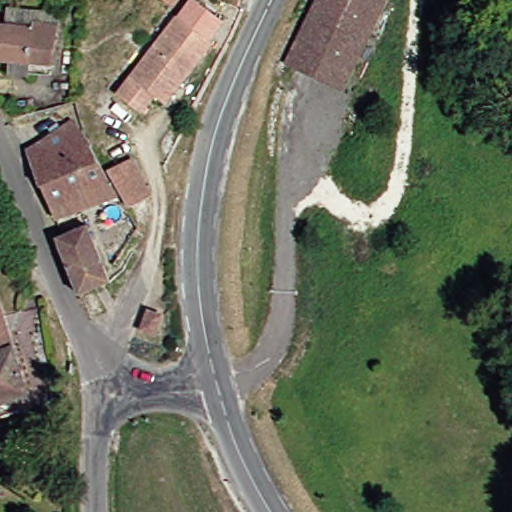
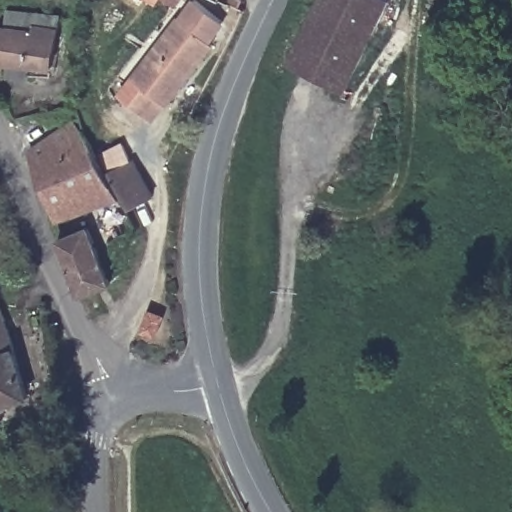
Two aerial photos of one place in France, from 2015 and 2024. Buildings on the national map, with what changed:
unchanged [(178,13),(179,15),(192,0),(199,0),(223,21),(207,39),(210,42),(164,100),(153,90),(139,107),(117,89),(178,13)]
unchanged [(320,0),(362,0),(380,9),(354,59),(304,32),(320,0)]
unchanged [(39,22),(60,24),(55,64),(0,62),(0,26),(38,27),(39,22)]
unchanged [(304,32),(354,59),(344,77),(300,55),(294,52),(304,32)]
unchanged [(72,127),(107,183),(113,192),(56,217),(28,151),(72,127)]
unchanged [(107,183),(127,171),(149,208),(129,220),(113,192),(107,183)]
unchanged [(81,291),(59,238),(93,225),(114,278),(96,286),(104,310),(90,315),(81,291)]
unchanged [(0,403),(0,299),(31,395),(0,403)]

